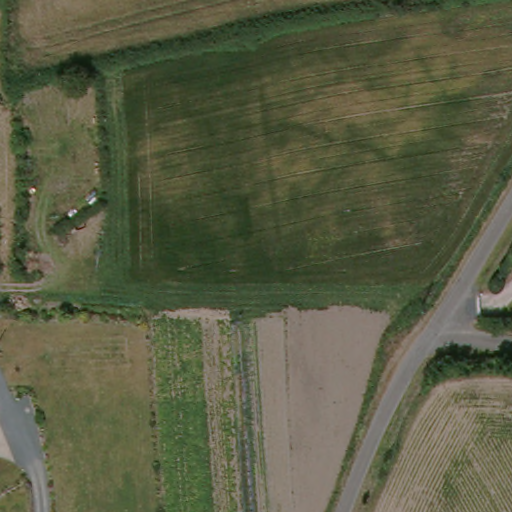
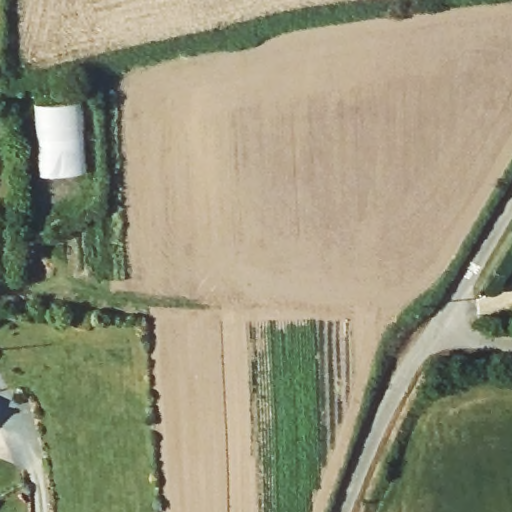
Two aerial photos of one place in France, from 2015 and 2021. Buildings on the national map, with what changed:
new [(76,101),(80,171),(42,175),(39,105),(76,101)]

